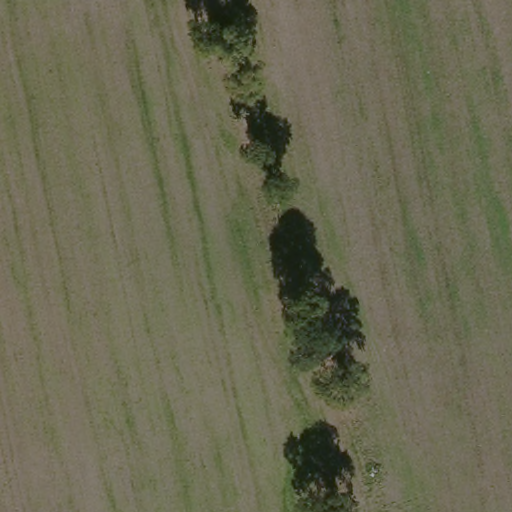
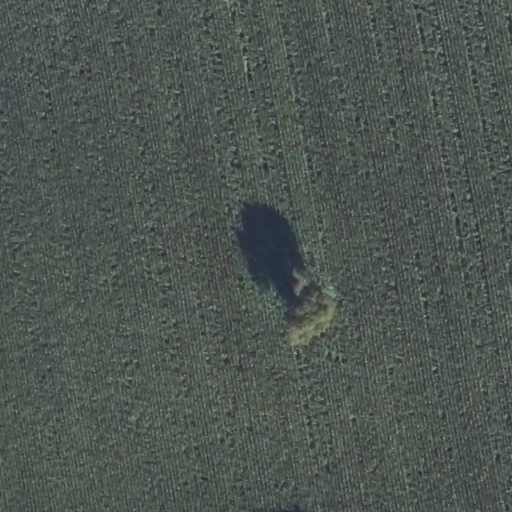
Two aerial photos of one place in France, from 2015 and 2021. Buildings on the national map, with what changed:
[]

